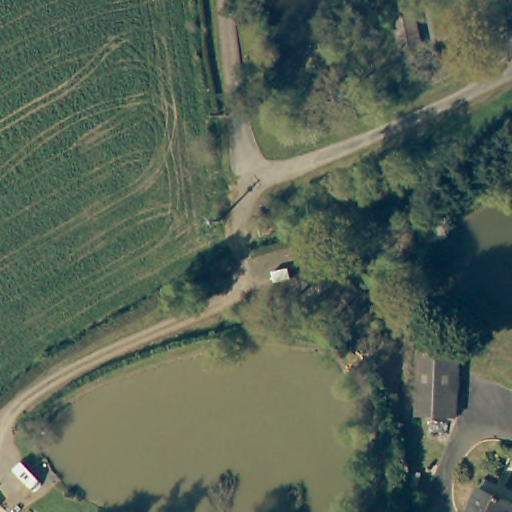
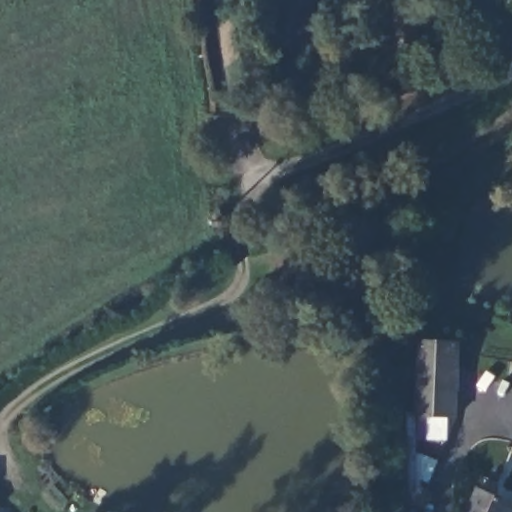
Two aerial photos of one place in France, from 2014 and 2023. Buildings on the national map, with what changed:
unchanged [(413,12),(420,47),(400,52),(394,17),(413,12)]
unchanged [(419,412),(423,339),(463,341),(459,414),(419,412)]
unchanged [(512,505),(512,512),(471,512),(481,490),(512,505)]

